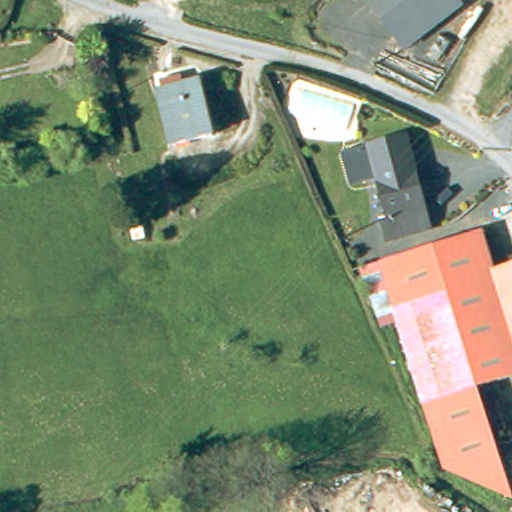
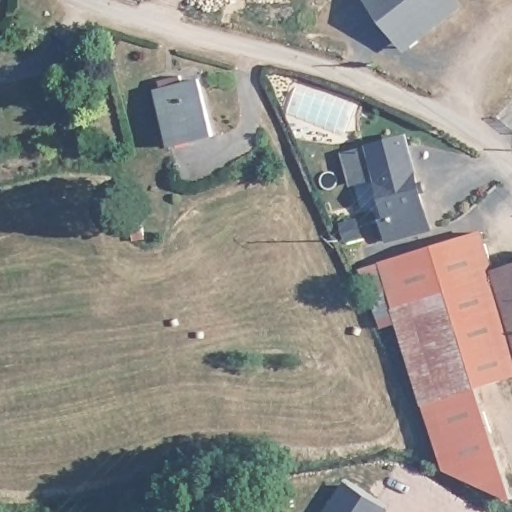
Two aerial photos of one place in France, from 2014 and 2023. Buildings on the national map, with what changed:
unchanged [(463,4),(403,51),(364,0),(459,0),(463,4)]
unchanged [(172,84),(190,78),(192,85),(195,85),(213,136),(174,150),(157,98),(175,92),(172,84)]
unchanged [(365,146),(406,134),(433,229),(388,241),(382,218),(386,218),(381,199),(374,180),(350,186),(340,153),(365,146)]
unchanged [(493,257),(499,279),(512,276),(512,380),(486,387),(475,390),(509,503),(442,468),(383,265),(487,237),(493,257)]
new [(372,501),(383,508),(380,512),(326,512),(345,483),(372,501)]

